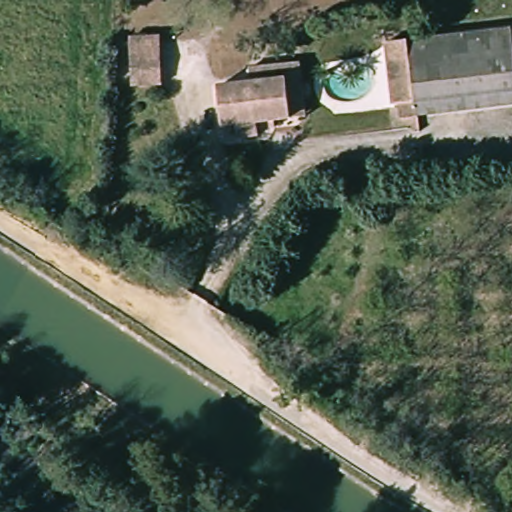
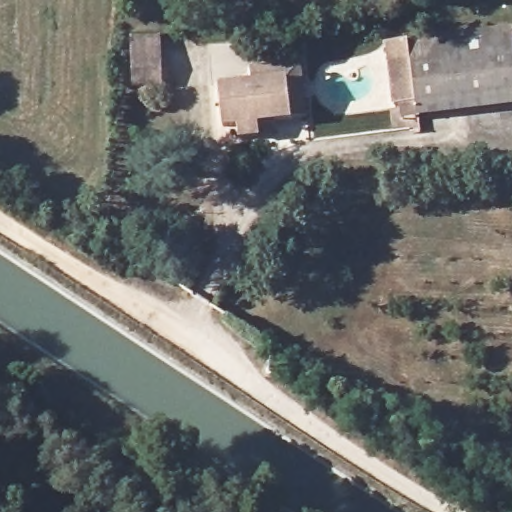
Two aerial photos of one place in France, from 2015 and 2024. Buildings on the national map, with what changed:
unchanged [(512,95),(411,102),(408,41),(512,33),(512,95)]
unchanged [(159,34),(163,85),(134,87),(131,35),(159,34)]
unchanged [(313,37),(315,71),(289,73),(251,76),(251,41),(313,37)]
unchanged [(251,76),(289,73),(294,119),(296,130),(227,135),(226,80),(251,76)]

